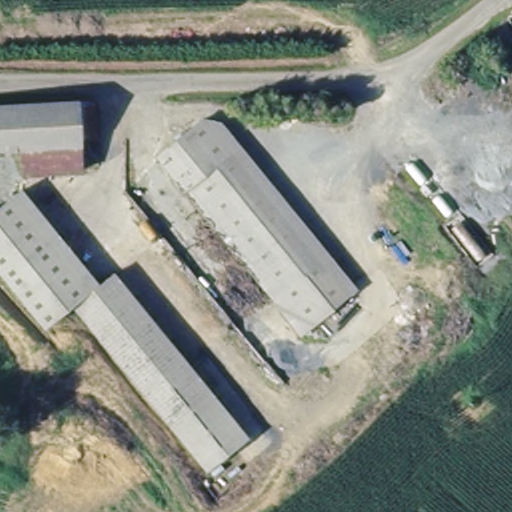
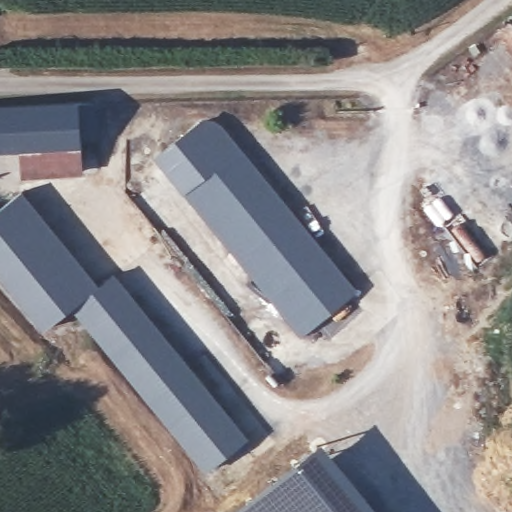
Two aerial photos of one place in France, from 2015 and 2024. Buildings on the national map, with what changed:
unchanged [(354,290),(299,330),(195,190),(155,138),(209,97),(239,139),(354,290)]
unchanged [(85,119),(88,144),(72,145),(74,170),(19,175),(18,151),(0,152),(0,107),(84,101),(85,119)]
unchanged [(97,280),(113,269),(121,280),(238,425),(247,435),(205,469),(84,318),(71,302),(54,316),(41,326),(13,291),(0,276),(0,202),(20,185),(36,205),(97,280)]
new [(274,482),(322,441),(342,464),(335,470),(364,500),(366,497),(379,512),(236,512),(274,482)]

